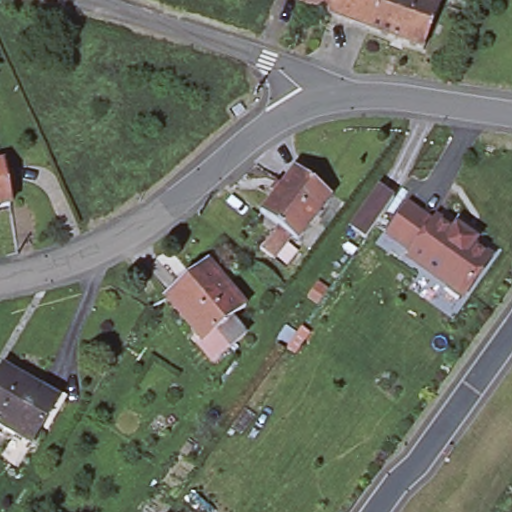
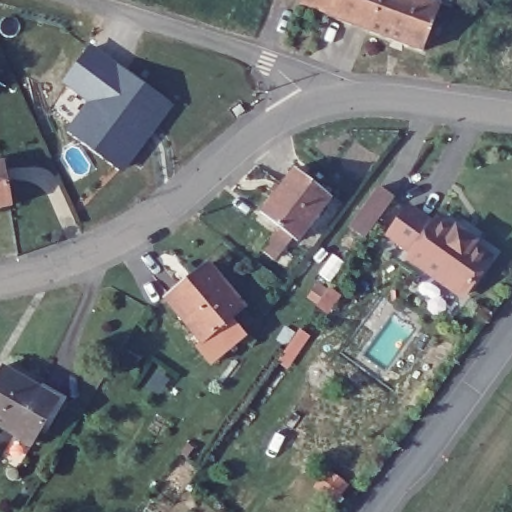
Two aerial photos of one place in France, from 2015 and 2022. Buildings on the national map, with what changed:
unchanged [(302,0),(333,0),(327,17),(300,6),(302,0)]
unchanged [(327,17),(333,0),(381,0),(370,33),(327,17)]
unchanged [(422,52),(370,33),(381,0),(428,0),(440,5),(422,52)]
new [(175,106),(124,173),(65,131),(88,103),(62,83),(90,44),(175,106)]
unchanged [(10,206),(0,207),(0,162),(1,161),(10,206)]
unchanged [(254,251),(272,228),(254,213),(285,173),(322,203),(292,243),(286,239),(268,262),(254,251)]
new [(378,187),(393,198),(365,237),(350,226),(378,187)]
unchanged [(413,259),(410,256),(414,251),(403,243),(390,234),(409,208),(422,217),(432,225),(436,220),(440,222),(454,232),(457,228),(462,232),(475,241),(472,245),(490,258),(463,295),(433,273),(413,259)]
unchanged [(194,348),(198,345),(161,299),(205,263),(242,309),(228,320),(242,337),(226,350),(207,366),(194,348)]
unchanged [(0,422),(0,368),(4,362),(60,396),(34,441),(22,460),(20,464),(7,457),(10,453),(5,450),(15,431),(0,422)]

